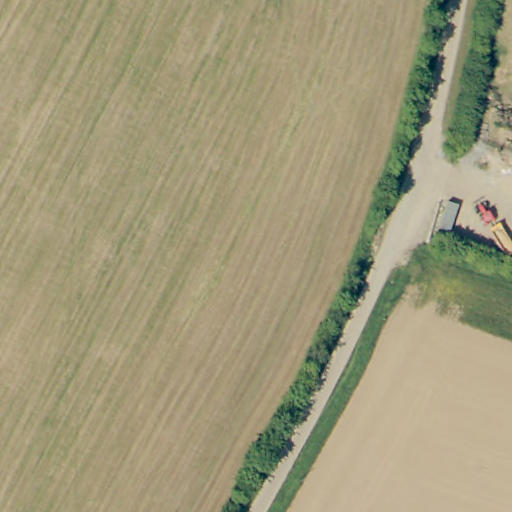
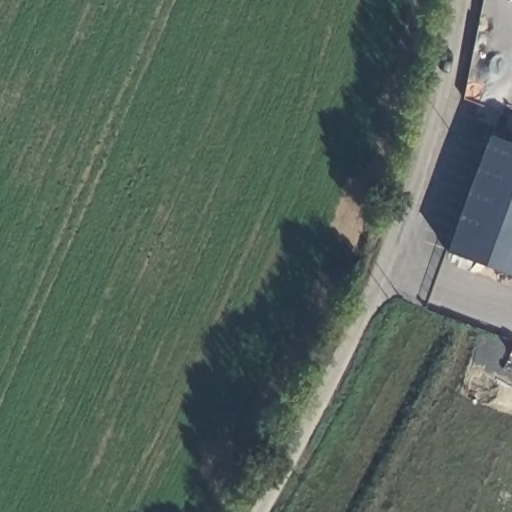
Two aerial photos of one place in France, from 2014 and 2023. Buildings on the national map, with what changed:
new [(448,250),(490,135),(512,143),(512,274),(448,250)]

